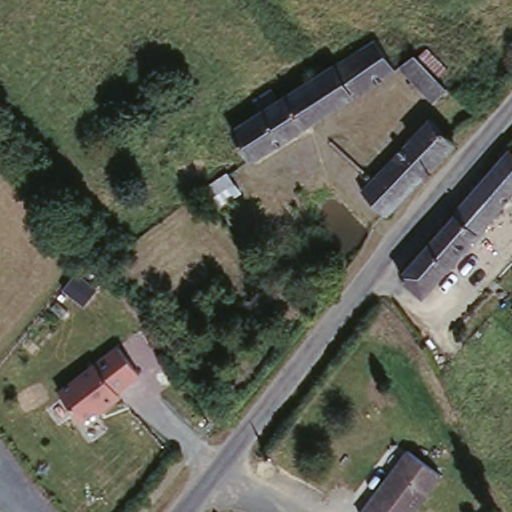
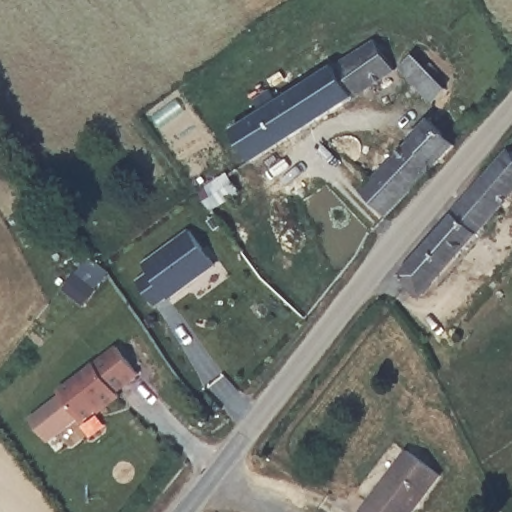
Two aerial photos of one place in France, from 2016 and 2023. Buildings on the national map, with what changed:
unchanged [(259,106),(252,95),(268,84),(276,96),(372,35),(389,65),(249,154),(230,123),(259,106)]
unchanged [(434,97),(404,64),(417,51),(419,54),(429,43),(448,64),(438,74),(448,83),(434,97)]
unchanged [(388,210),(363,183),(431,114),(456,139),(388,210)]
unchanged [(510,146),(512,149),(512,189),(424,291),(402,271),(510,146)]
unchanged [(229,179),(240,198),(215,216),(204,195),(229,179)]
new [(215,265),(170,299),(168,296),(156,305),(137,278),(147,269),(141,263),(190,229),(215,265)]
new [(64,290),(89,258),(109,272),(85,307),(64,290)]
unchanged [(58,389),(119,340),(146,375),(86,424),(58,389)]
unchanged [(442,471),(411,512),(370,512),(364,507),(411,446),(442,471)]

